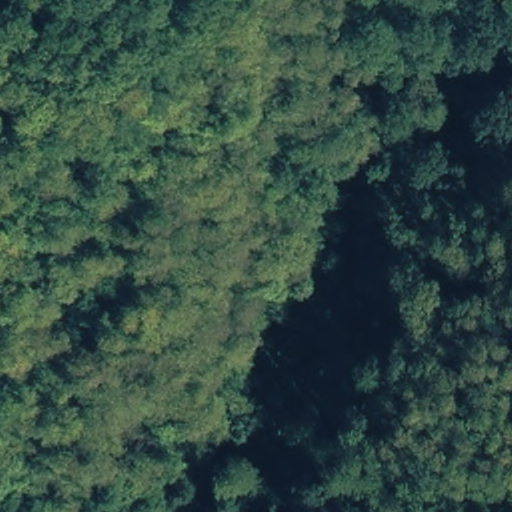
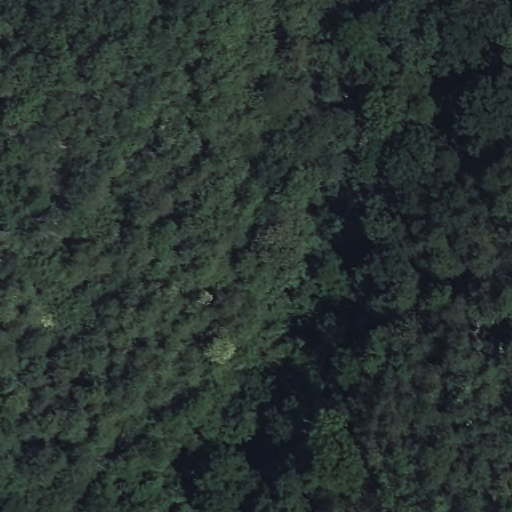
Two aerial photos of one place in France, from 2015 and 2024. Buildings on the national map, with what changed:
[]

